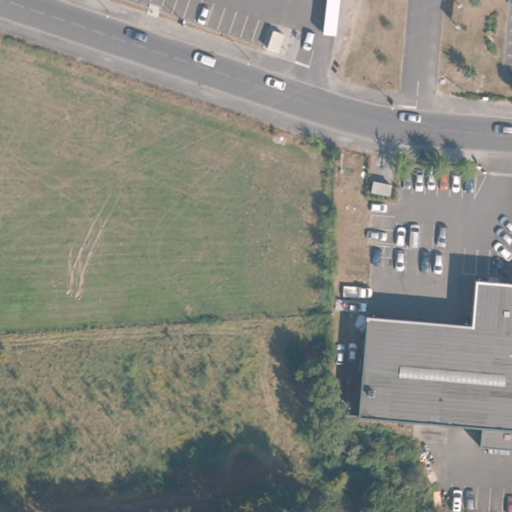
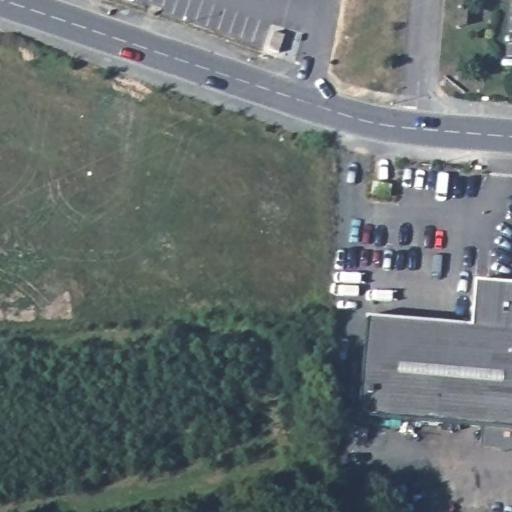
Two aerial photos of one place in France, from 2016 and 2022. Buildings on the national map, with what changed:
unchanged [(392,192),(373,189),(375,178),(393,181),(392,192)]
unchanged [(512,450),(477,448),(479,428),(355,418),(363,317),(468,326),(472,281),(512,284),(512,450)]

